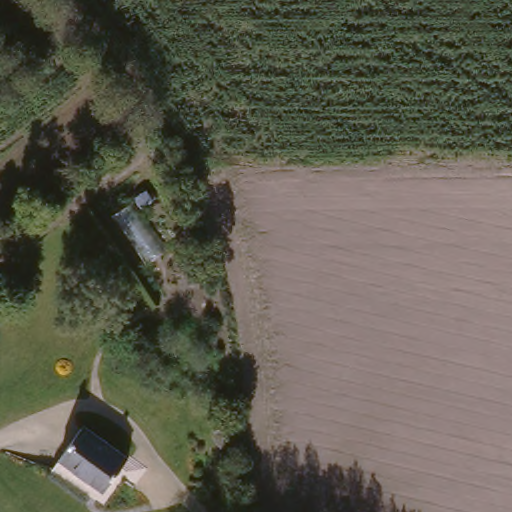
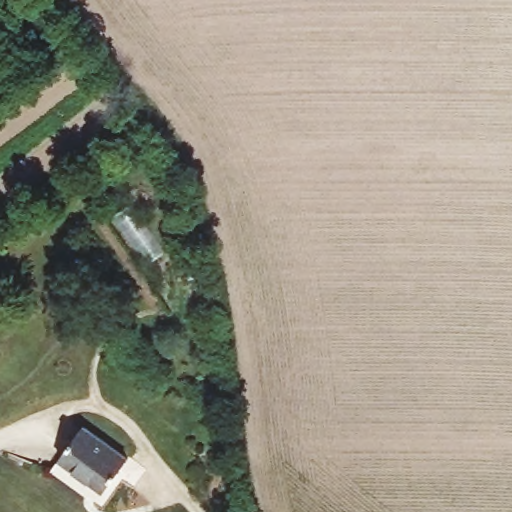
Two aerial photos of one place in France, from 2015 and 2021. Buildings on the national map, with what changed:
unchanged [(110,489),(57,455),(59,453),(82,421),(134,452),(115,481),(110,489)]

